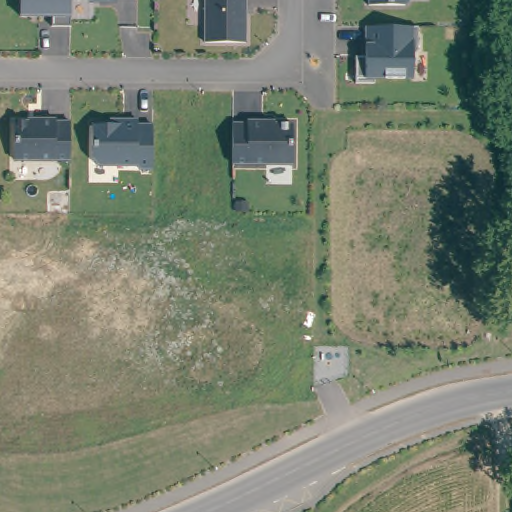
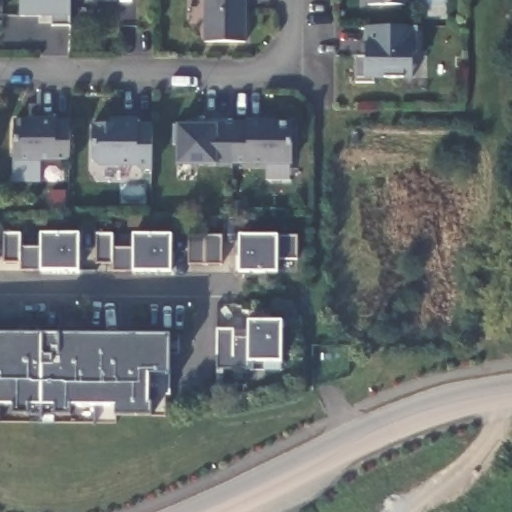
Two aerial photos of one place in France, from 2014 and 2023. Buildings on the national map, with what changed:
unchanged [(52,26),(52,16),(20,16),(20,0),(71,0),(71,27),(52,26)]
unchanged [(99,2),(99,0),(116,0),(116,2),(99,2)]
unchanged [(205,43),(205,0),(246,0),(245,44),(205,43)]
unchanged [(405,6),(368,5),(368,0),(410,0),(410,1),(405,6)]
unchanged [(417,27),(417,39),(417,51),(412,56),(412,79),(374,79),(374,84),(355,84),(355,56),(365,56),(365,26),(412,27),(417,27)]
unchanged [(14,160),(14,121),(37,121),(37,119),(55,119),(55,121),(70,122),(70,160),(14,160)]
unchanged [(140,169),(136,166),(97,165),(92,160),(92,124),(120,124),(120,119),(137,120),(137,125),(152,125),(152,169),(140,169)]
new [(217,164),(217,166),(175,166),(175,145),(172,146),(172,125),(176,125),(176,124),(196,124),(197,119),(232,119),(232,123),(232,164),(217,164)]
unchanged [(265,124),(292,124),(292,164),(232,164),(232,123),(247,124),(247,121),(265,121),(265,124)]
new [(80,271),(41,270),(21,269),(20,263),(2,263),(4,233),(20,234),(20,248),(41,248),(41,234),(79,234),(80,271)]
new [(134,270),(114,270),(112,264),(95,264),(95,234),(112,234),(112,249),(134,249),(134,234),(170,235),(170,271),(134,270)]
new [(222,264),(189,264),(189,235),(222,235),(222,264)]
new [(298,259),(278,259),(278,273),(239,273),(239,235),(278,235),(297,237),(298,259)]
new [(282,362),(280,372),(252,372),(254,362),(249,362),(248,371),(215,370),(216,329),(234,329),(234,331),(247,332),(247,320),(282,321),(282,362)]
new [(170,375),(149,374),(149,387),(158,387),(157,398),(149,398),(148,404),(151,404),(152,417),(122,417),(118,416),(116,411),(116,407),(71,406),(71,416),(56,415),(29,415),(14,414),(14,407),(0,406),(0,335),(170,337),(170,375)]

